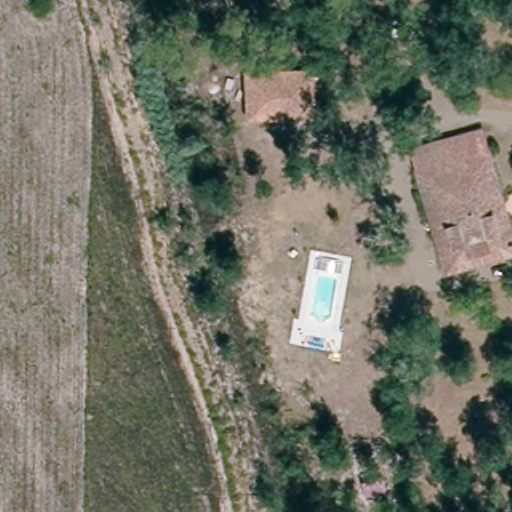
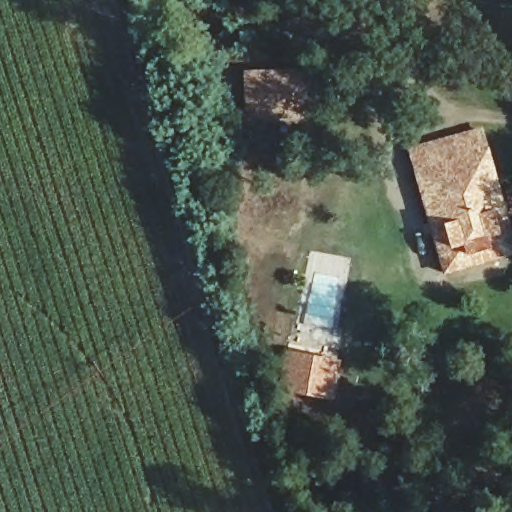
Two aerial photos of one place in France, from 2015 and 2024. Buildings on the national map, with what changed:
unchanged [(310,72),(311,117),(247,119),(246,74),(310,72)]
unchanged [(511,244),(512,243),(512,252),(445,271),(411,153),(480,133),(511,244)]
new [(334,401),(278,391),(286,351),(341,361),(334,401)]

